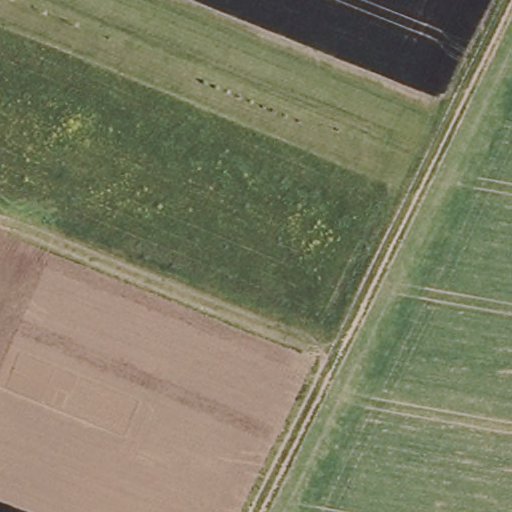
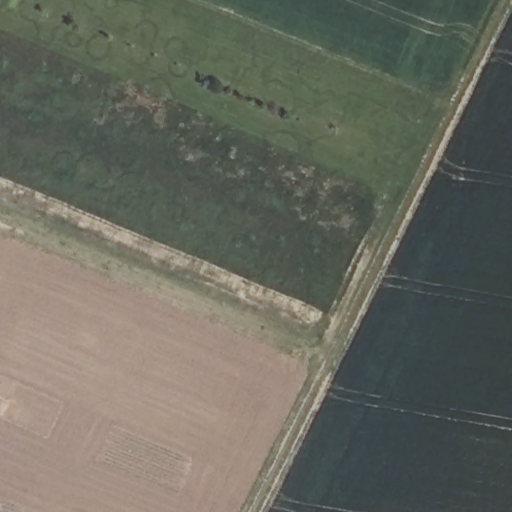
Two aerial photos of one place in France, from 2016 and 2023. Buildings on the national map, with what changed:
[]

